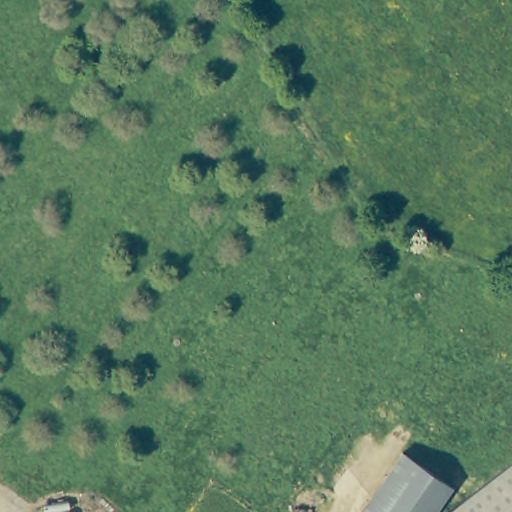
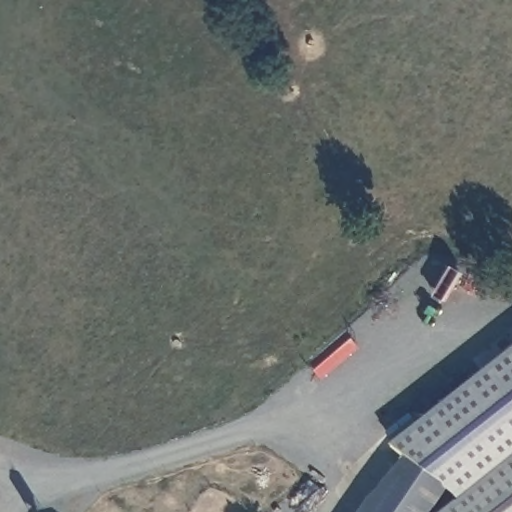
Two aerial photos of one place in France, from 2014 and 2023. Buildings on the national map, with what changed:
new [(447,486),(401,454),(394,445),(512,353),(512,458),(461,498),(447,486)]
unchanged [(401,454),(447,486),(429,512),(360,512),(401,454)]
unchanged [(512,512),(443,512),(512,458),(512,512)]

